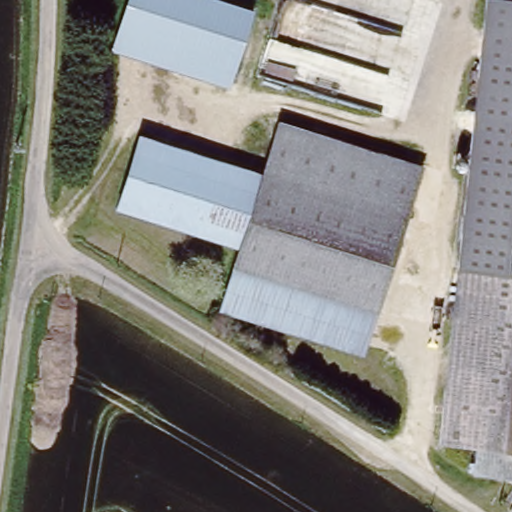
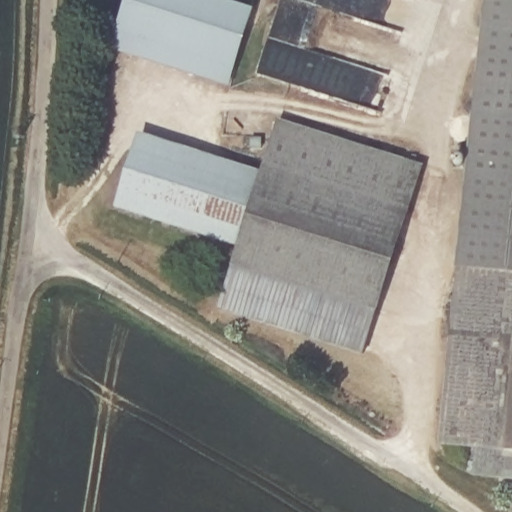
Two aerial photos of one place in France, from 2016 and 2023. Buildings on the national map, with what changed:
unchanged [(117,34),(127,0),(215,0),(247,10),(229,67),(224,85),(112,51),(117,34)]
unchanged [(487,0),(512,0),(512,28),(485,25),(487,0)]
unchanged [(469,180),(485,25),(512,28),(512,298),(458,292),(469,180)]
unchanged [(230,262),(237,241),(254,191),(261,169),(276,122),(419,166),(373,310),(230,262)]
unchanged [(117,204),(134,151),(141,131),(261,169),(254,191),(237,241),(117,204)]
unchanged [(217,305),(230,262),(373,310),(359,353),(217,305)]
unchanged [(458,292),(512,298),(512,412),(509,448),(478,446),(444,442),(458,292)]
unchanged [(507,476),(476,473),(478,446),(509,448),(512,412),(512,466),(508,465),(507,476)]
unchanged [(512,509),(512,512),(510,512),(512,509)]

